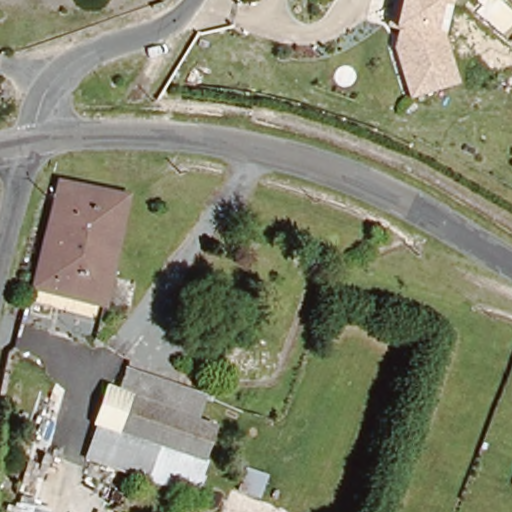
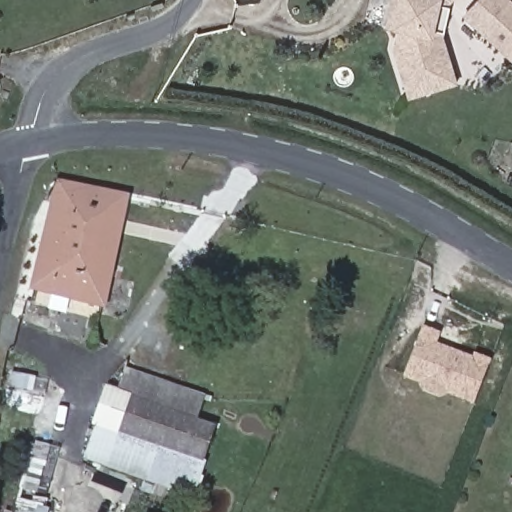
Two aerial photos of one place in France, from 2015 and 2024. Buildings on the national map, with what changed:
unchanged [(398,31),(392,30),(385,29),(392,0),(443,0),(434,40),(448,90),(408,102),(393,50),(398,31)]
unchanged [(444,37),(458,86),(448,90),(434,40),(443,0),(451,0),(444,37)]
new [(462,15),(476,0),(511,0),(512,1),(512,61),(462,15)]
unchanged [(110,306),(21,285),(43,177),(111,193),(94,275),(116,283),(110,306)]
unchanged [(94,275),(111,193),(112,190),(139,199),(116,283),(94,275)]
new [(448,396),(439,399),(421,392),(419,385),(404,378),(422,326),(439,332),(437,344),(473,356),(474,352),(491,360),(473,405),(448,396)]
unchanged [(74,462),(104,382),(117,389),(124,364),(205,394),(196,419),(217,427),(193,500),(74,462)]
unchanged [(36,506),(40,507),(39,512),(5,512),(11,484),(38,490),(36,506)]

